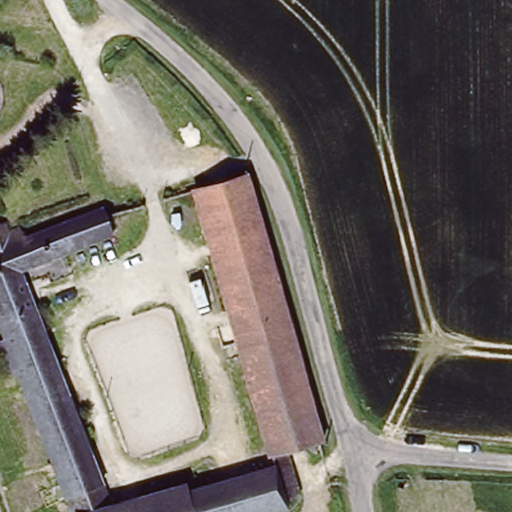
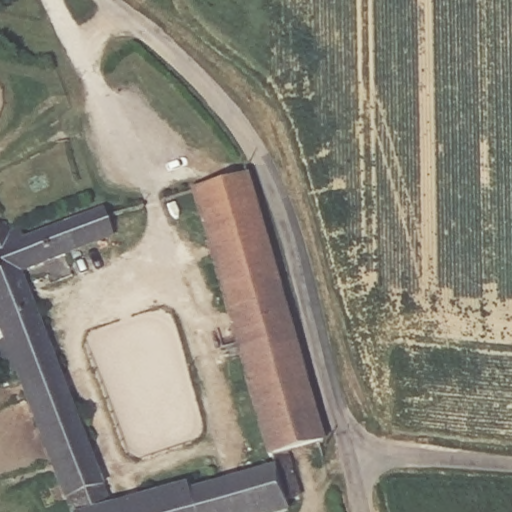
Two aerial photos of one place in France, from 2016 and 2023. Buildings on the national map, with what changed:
unchanged [(23,272),(110,506),(184,485),(188,494),(276,470),(189,197),(241,179),(324,444),(287,455),(298,501),(289,503),(291,512),(70,512),(19,374),(8,378),(0,357),(0,343),(5,341),(0,327),(0,278),(0,226),(6,224),(10,235),(99,205),(105,226),(111,242),(23,272)]

